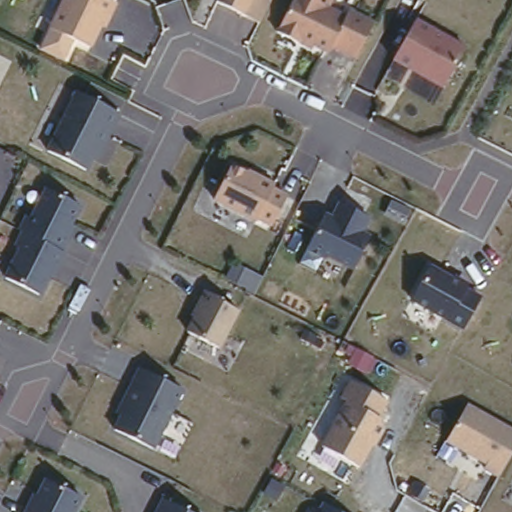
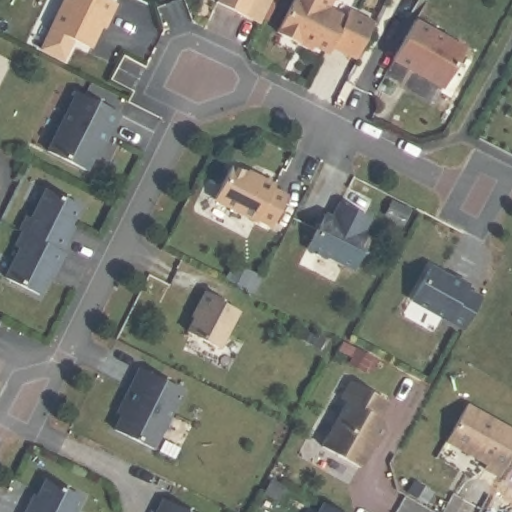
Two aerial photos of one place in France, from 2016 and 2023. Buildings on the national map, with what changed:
unchanged [(96,48),(78,40),(64,64),(35,50),(61,0),(117,0),(119,2),(96,48)]
unchanged [(217,1),(218,0),(257,0),(251,16),(217,1)]
unchanged [(345,13),(347,6),(372,17),(352,64),(280,31),(293,0),(337,0),(334,8),(345,13)]
unchanged [(472,45),(448,89),(393,61),(419,15),(472,45)]
unchanged [(124,110),(101,160),(94,156),(87,170),(46,150),(77,89),(124,110)]
unchanged [(283,184),(280,189),(291,195),(275,229),(218,200),(237,162),(283,184)]
unchanged [(86,202),(65,247),(68,249),(46,293),(4,275),(19,247),(12,244),(30,210),(34,212),(49,182),(86,202)]
unchanged [(374,215),(364,232),(373,237),(358,271),(309,246),(327,211),(333,214),(340,199),(374,215)]
unchanged [(409,302),(431,265),(470,287),(468,290),(481,298),(464,331),(409,302)]
unchanged [(242,310),(222,351),(181,332),(202,291),(242,310)]
unchanged [(185,387),(157,448),(108,426),(137,365),(185,387)]
unchanged [(391,401),(364,465),(323,446),(350,384),(391,401)]
unchanged [(512,429),(512,453),(501,472),(443,442),(462,402),(512,429)]
unchanged [(85,496),(77,512),(26,512),(43,477),(85,496)]
unchanged [(196,512),(156,512),(164,496),(196,512)]
unchanged [(340,512),(319,512),(323,502),(340,512)]

